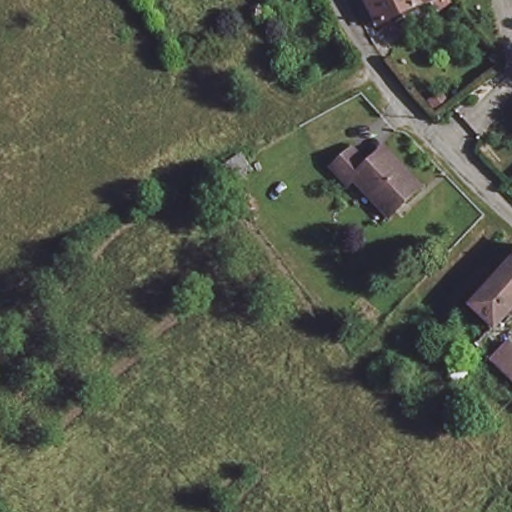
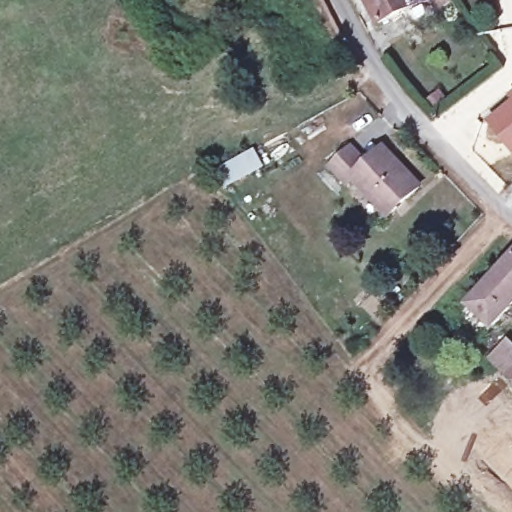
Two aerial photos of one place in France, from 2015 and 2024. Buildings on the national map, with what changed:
unchanged [(385,25),(374,0),(442,0),(385,25)]
new [(512,98),(512,153),(486,123),(512,98)]
unchanged [(263,166),(232,188),(219,165),(248,148),(263,166)]
unchanged [(360,180),(354,184),(340,167),(359,151),(372,165),(390,150),(425,190),(392,217),(360,180)]
unchanged [(477,305),(485,296),(512,266),(512,319),(504,328),(477,305)]
unchanged [(512,345),(512,384),(486,354),(505,338),(512,345)]

